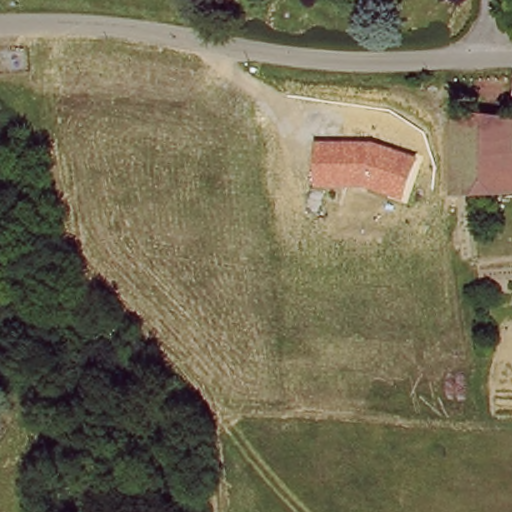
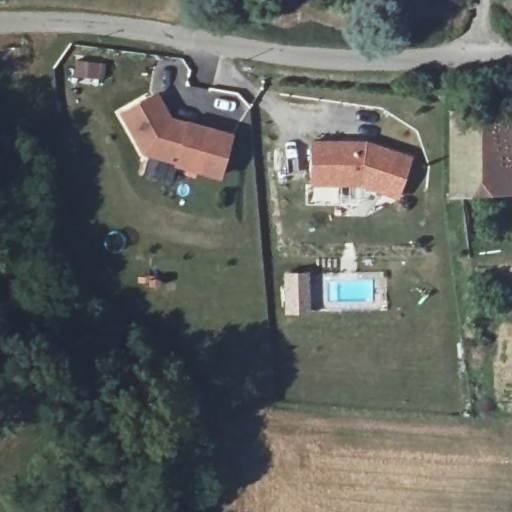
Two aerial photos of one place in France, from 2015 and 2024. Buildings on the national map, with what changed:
unchanged [(510,112),(511,71),(512,71),(512,155),(448,161),(448,111),(510,112)]
new [(157,92),(172,118),(232,135),(220,179),(173,167),(174,163),(142,155),(118,115),(157,92)]
unchanged [(311,141),(367,140),(414,156),(398,201),(362,187),(312,186),(311,141)]
unchanged [(512,192),(478,196),(472,196),(465,197),(449,199),(448,161),(512,155),(512,192)]

